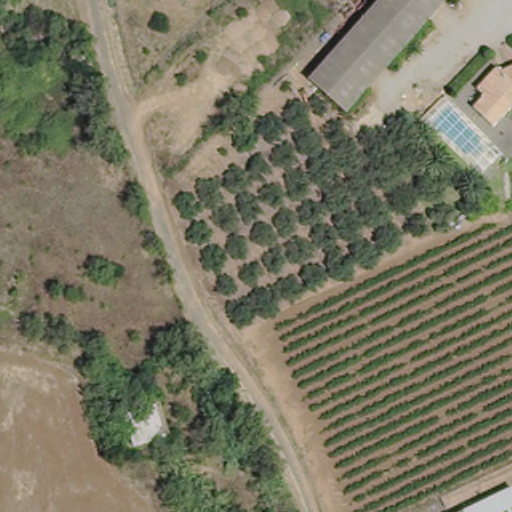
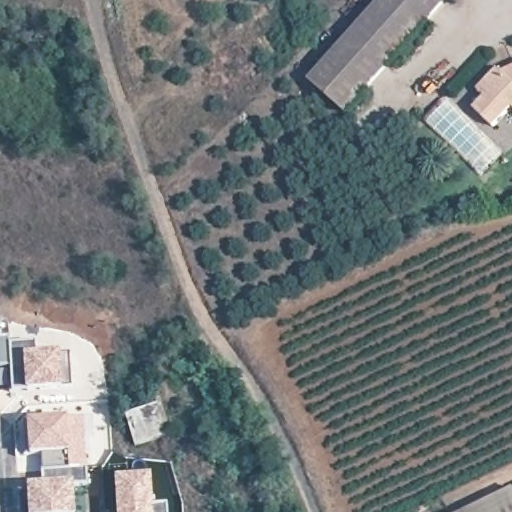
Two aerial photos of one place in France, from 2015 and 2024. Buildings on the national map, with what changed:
unchanged [(455,0),(347,109),(312,72),(384,0),(455,0)]
unchanged [(482,94),(475,86),(496,65),(503,70),(512,67),(512,109),(512,108),(487,128),(472,109),(482,94)]
new [(14,390),(0,390),(0,335),(10,336),(14,390)]
new [(33,342),(34,353),(68,352),(72,389),(22,391),(20,343),(33,342)]
unchanged [(127,408),(163,397),(178,432),(138,445),(127,408)]
new [(40,483),(39,457),(27,458),(27,420),(85,418),(87,485),(75,487),(78,512),(28,512),(27,484),(40,483)]
new [(152,476),(155,505),(156,512),(117,512),(115,477),(152,476)]
new [(512,488),(512,512),(463,512),(512,488)]
demolished [(479,512),(457,512),(475,503),(479,512)]

